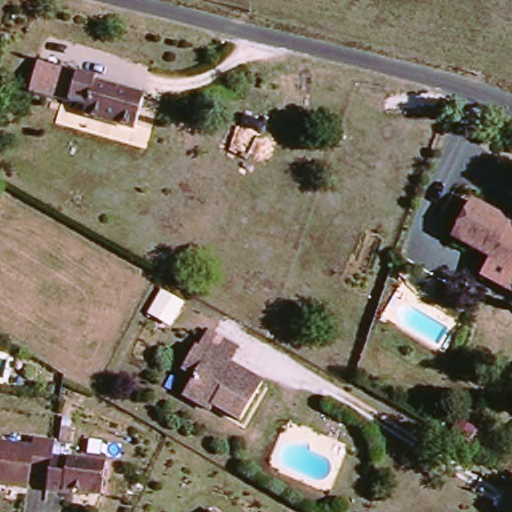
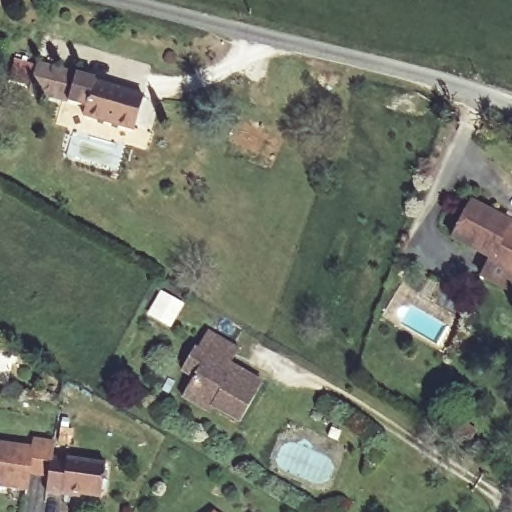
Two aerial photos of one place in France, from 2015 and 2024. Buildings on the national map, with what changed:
unchanged [(34,55),(73,68),(63,98),(24,86),(34,55)]
unchanged [(90,74),(88,79),(140,94),(130,126),(78,110),(80,104),(63,98),(73,68),(90,74)]
unchanged [(490,255),(453,237),(472,197),(492,207),(490,213),(512,224),(512,272),(487,261),(490,255)]
unchanged [(149,313),(163,290),(186,305),(175,326),(149,313)]
unchanged [(206,333),(236,350),(229,364),(260,382),(238,422),(209,405),(213,399),(187,385),(192,375),(180,370),(190,351),(195,353),(206,333)]
unchanged [(65,499),(45,497),(47,479),(30,477),(28,492),(0,488),(0,446),(33,450),(34,443),(54,445),(52,459),(106,467),(102,500),(66,496),(65,499)]

